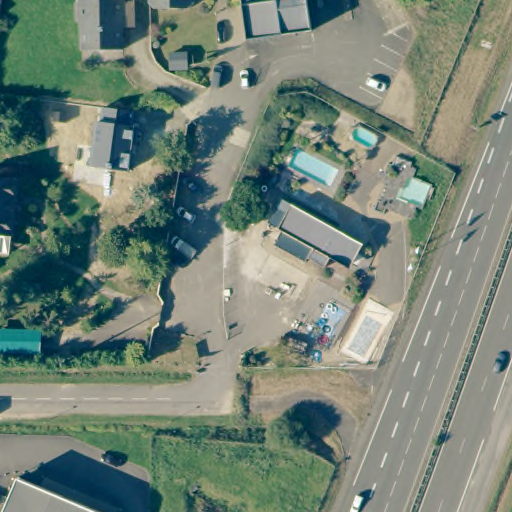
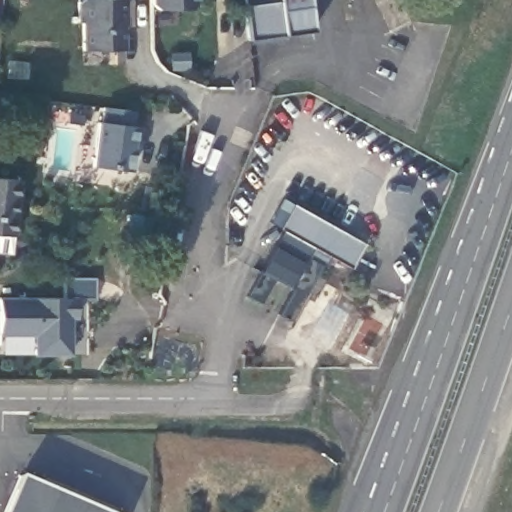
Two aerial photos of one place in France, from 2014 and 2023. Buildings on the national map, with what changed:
unchanged [(124,16),(125,50),(85,51),(85,23),(82,23),(80,0),(126,0),(127,16),(124,16)]
unchanged [(150,0),(196,0),(196,7),(190,13),(157,13),(150,7),(150,0)]
unchanged [(250,41),(244,0),(309,0),(314,30),(250,41)]
unchanged [(102,105),(134,110),(132,126),(136,126),(129,171),(94,168),(101,121),(102,105)]
unchanged [(9,239),(0,238),(0,179),(14,180),(9,239)]
unchanged [(317,221),(316,223),(351,244),(340,263),(323,253),(318,262),(301,252),(307,243),(277,226),(290,204),(317,221)]
unchanged [(307,243),(301,252),(318,262),(323,253),(330,257),(292,323),(277,314),(291,290),(272,280),(261,303),(248,295),(273,248),(285,230),(307,243)]
new [(62,278),(93,278),(94,296),(79,297),(79,318),(74,318),(74,355),(35,355),(34,335),(0,335),(0,298),(62,298),(62,278)]
unchanged [(14,483),(86,512),(1,512),(14,483)]

